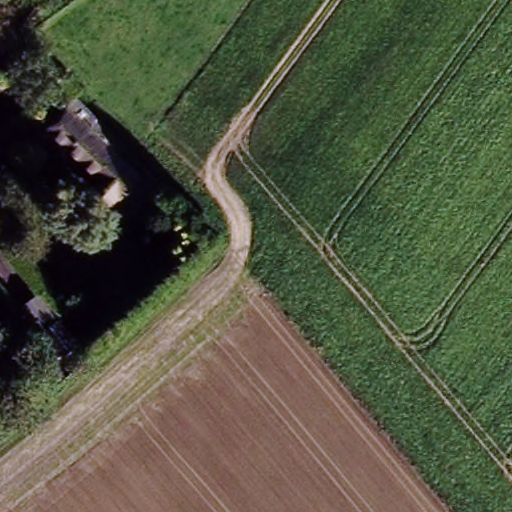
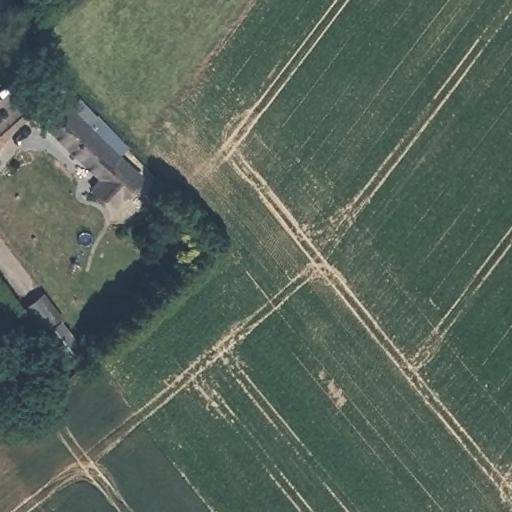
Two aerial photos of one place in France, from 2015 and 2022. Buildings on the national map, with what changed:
unchanged [(20,48),(0,61),(0,34),(8,29),(20,48)]
unchanged [(105,131),(118,145),(113,150),(86,175),(34,123),(58,99),(60,100),(68,92),(105,131)]
unchanged [(137,173),(102,207),(77,183),(86,175),(113,150),(137,173)]
unchanged [(44,297),(65,323),(60,326),(80,350),(56,369),(17,318),(44,297)]
unchanged [(0,343),(0,330),(7,338),(0,343)]

